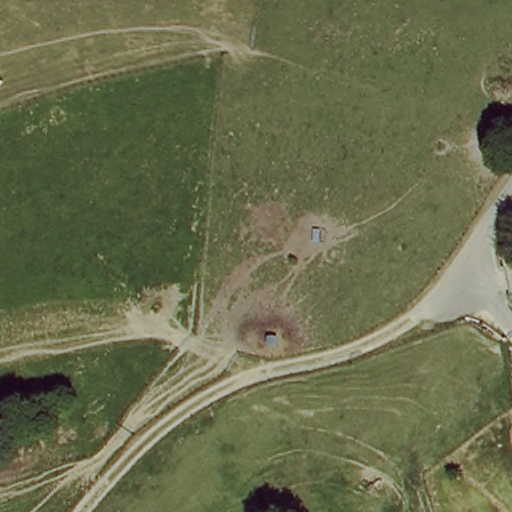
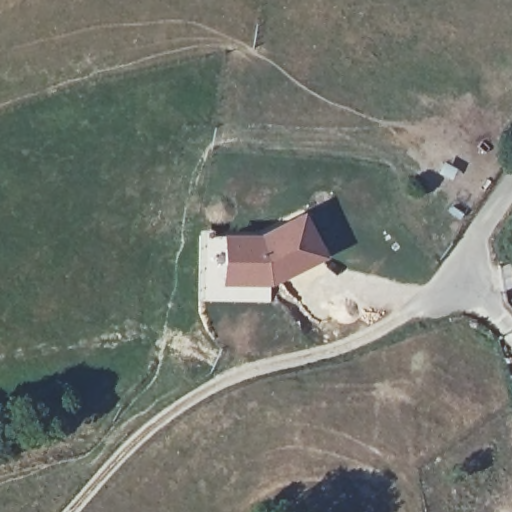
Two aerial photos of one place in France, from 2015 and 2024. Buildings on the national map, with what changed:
new [(223,235),(260,234),(303,211),(327,257),(272,286),(223,285),(223,235)]

